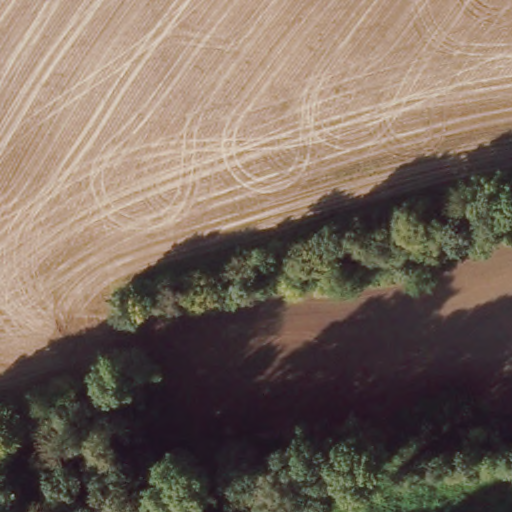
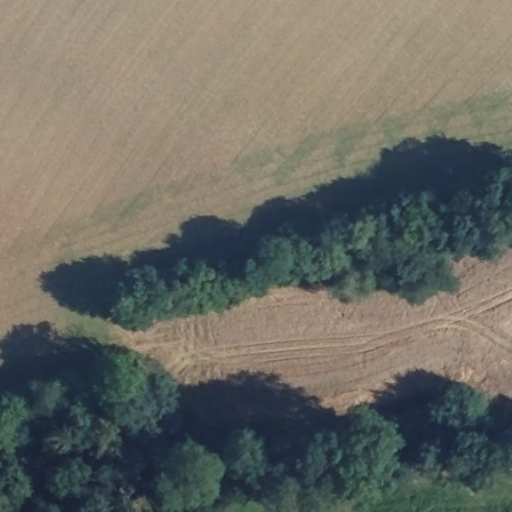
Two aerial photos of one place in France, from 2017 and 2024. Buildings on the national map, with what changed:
unchanged [(438,236),(441,250),(418,254),(415,241),(438,236)]

